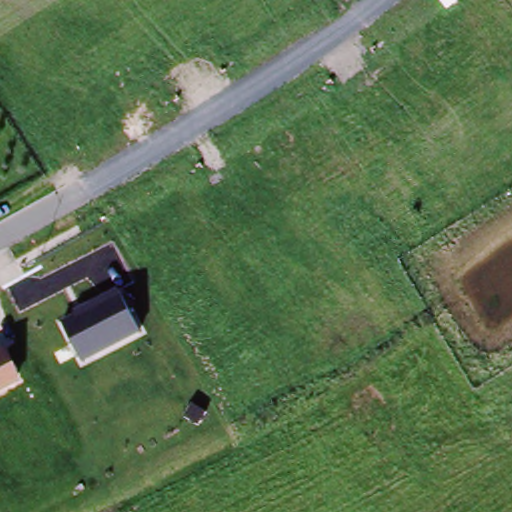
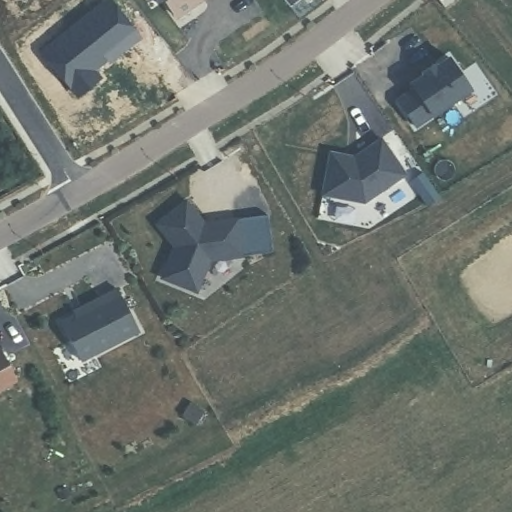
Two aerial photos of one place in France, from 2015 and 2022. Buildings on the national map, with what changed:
new [(196,2),(196,6),(176,18),(164,0),(198,0),(196,2)]
new [(108,1),(139,40),(125,50),(124,49),(93,73),(100,81),(78,99),(42,54),(108,1)]
new [(125,50),(95,75),(93,73),(124,49),(125,50)]
new [(419,89),(415,84),(428,75),(427,73),(439,64),(441,67),(454,58),(475,90),(420,127),(402,100),(419,89)]
new [(333,150),(349,154),(349,157),(356,158),(357,156),(384,138),(408,173),(366,201),(324,192),(333,150)]
new [(177,246),(159,225),(188,200),(206,223),(239,218),(244,256),(211,260),(198,292),(175,282),(164,278),(170,263),(177,246)]
unchanged [(59,320),(118,290),(139,333),(83,363),(59,320)]
unchanged [(0,392),(0,347),(18,383),(0,392)]

